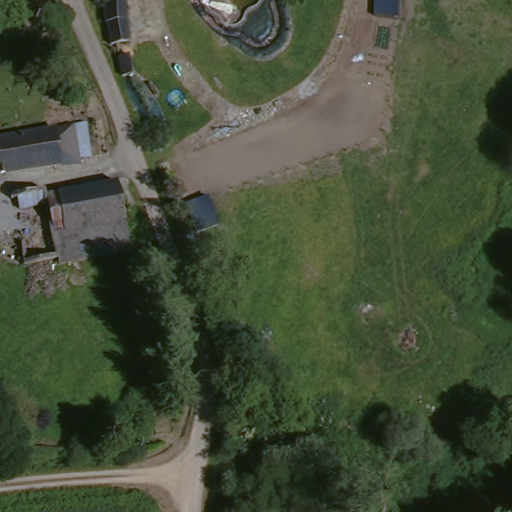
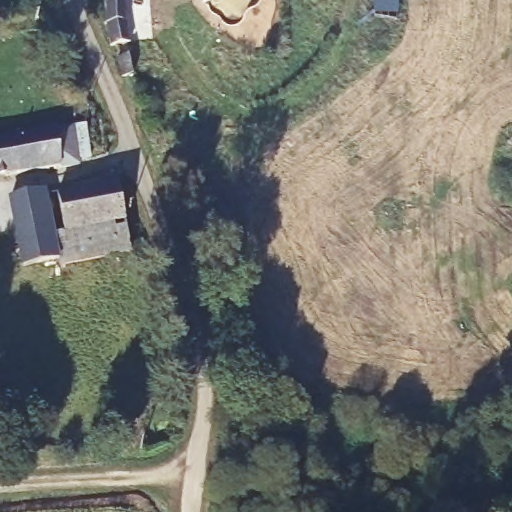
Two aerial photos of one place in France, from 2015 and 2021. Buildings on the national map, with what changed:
unchanged [(111,50),(109,28),(106,28),(105,0),(125,0),(128,50),(111,50)]
demolished [(132,23),(131,23),(131,0),(155,0),(156,23),(132,23)]
unchanged [(130,59),(134,76),(121,76),(119,61),(130,59)]
unchanged [(84,165),(0,177),(0,139),(79,129),(84,165)]
unchanged [(137,252),(56,260),(49,190),(124,180),(137,252)]
new [(56,260),(21,266),(10,196),(49,190),(56,260)]

